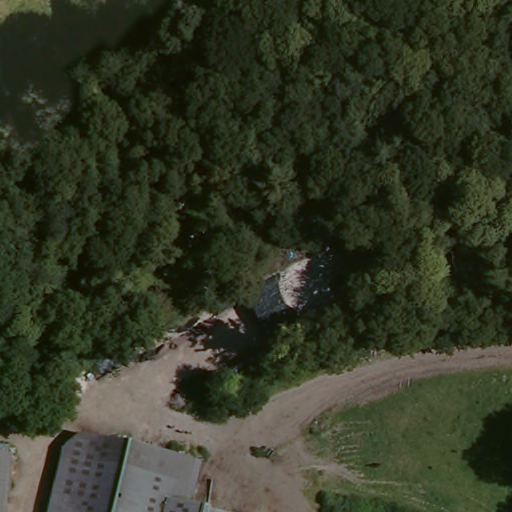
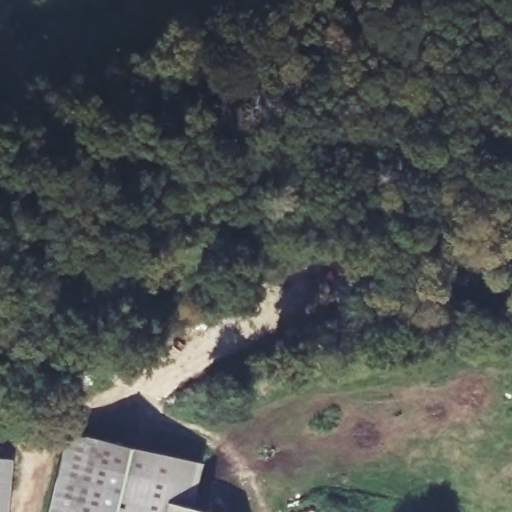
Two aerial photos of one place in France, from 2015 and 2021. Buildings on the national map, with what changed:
unchanged [(186,512),(63,512),(73,460),(77,440),(195,462),(190,491),(186,512)]
unchanged [(1,512),(0,512),(0,461),(5,461),(1,512)]

